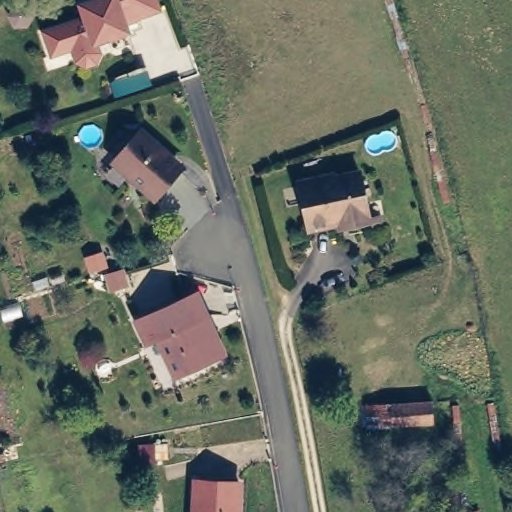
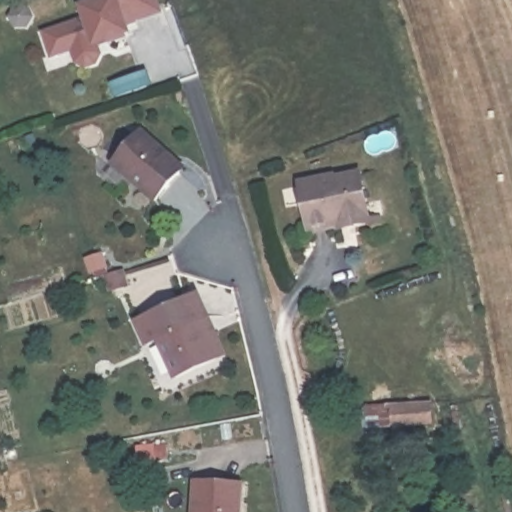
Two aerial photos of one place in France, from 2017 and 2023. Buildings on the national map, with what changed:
unchanged [(157,6),(134,15),(135,17),(124,21),(126,27),(94,39),(98,50),(94,59),(85,62),(76,58),(72,45),(51,52),(44,31),(85,16),(80,2),(86,0),(154,0),(157,6)]
unchanged [(169,156),(170,163),(180,172),(156,201),(134,182),(133,176),(116,160),(141,132),(169,156)]
unchanged [(370,226),(356,229),(355,224),(340,227),(340,225),(312,231),(308,210),(305,211),(300,187),(333,180),(334,182),(360,177),(370,226)]
unchanged [(219,358),(179,377),(161,339),(149,344),(139,322),(197,294),(208,317),(226,355),(219,358)]
unchanged [(437,429),(371,434),(370,406),(436,402),(437,429)]
unchanged [(237,512),(194,512),(195,477),(238,478),(237,512)]

